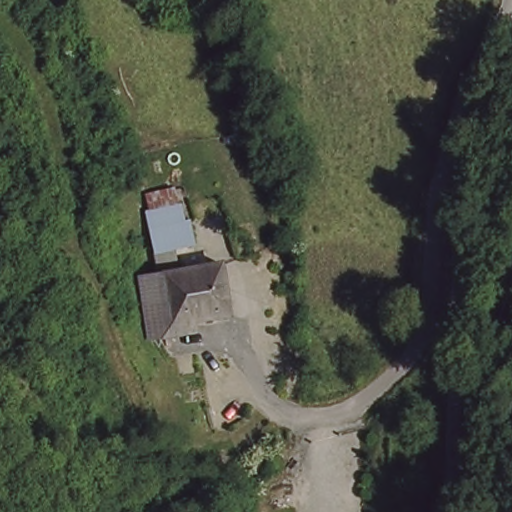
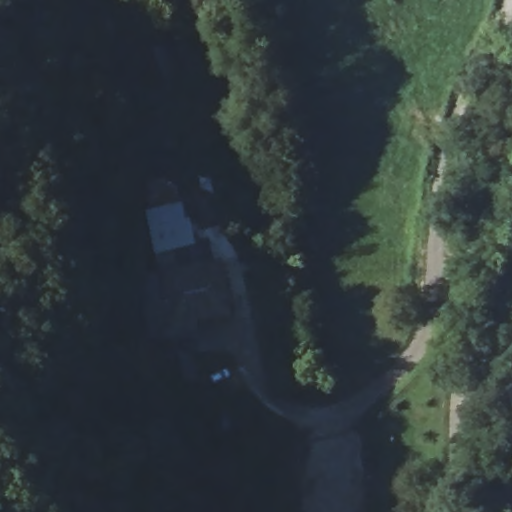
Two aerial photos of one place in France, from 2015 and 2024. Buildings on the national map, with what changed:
unchanged [(145,187),(180,180),(188,215),(195,214),(198,242),(156,249),(145,187)]
unchanged [(230,313),(185,320),(177,271),(222,265),(230,313)]
unchanged [(185,320),(160,324),(153,275),(177,271),(185,320)]

